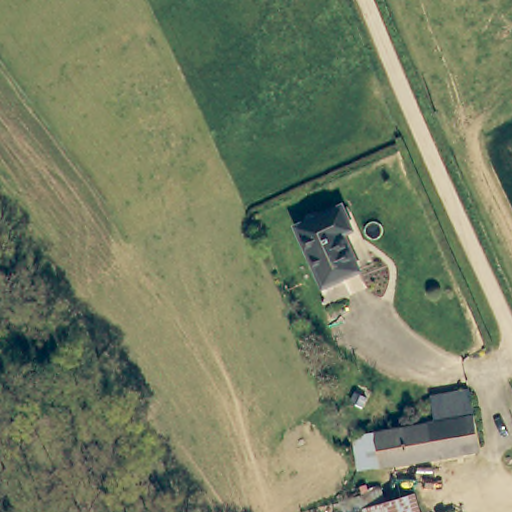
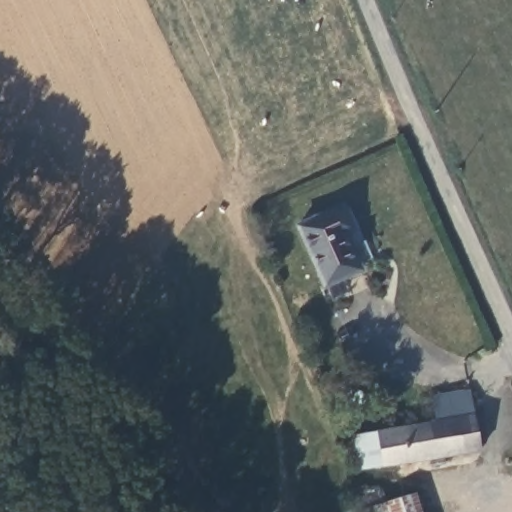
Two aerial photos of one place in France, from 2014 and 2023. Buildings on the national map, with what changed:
unchanged [(343,207),(353,230),(344,234),(361,271),(324,287),(298,227),(343,207)]
unchanged [(470,392),(481,451),(361,470),(356,437),(414,427),(436,422),(431,397),(470,392)]
unchanged [(382,491),(386,503),(415,495),(420,512),(363,512),(359,497),(382,491)]

